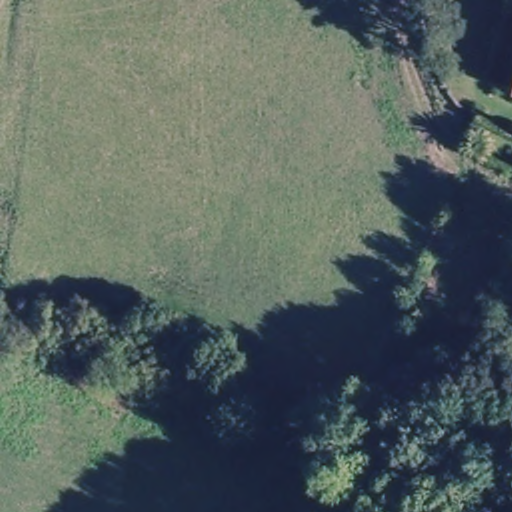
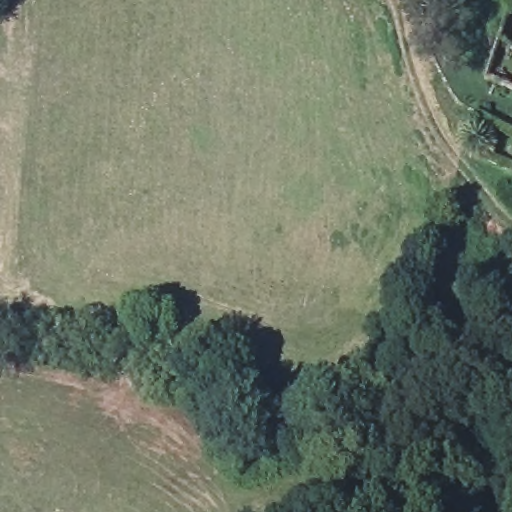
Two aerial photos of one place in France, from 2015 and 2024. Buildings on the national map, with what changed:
unchanged [(510,96),(512,90),(512,97),(510,96)]

